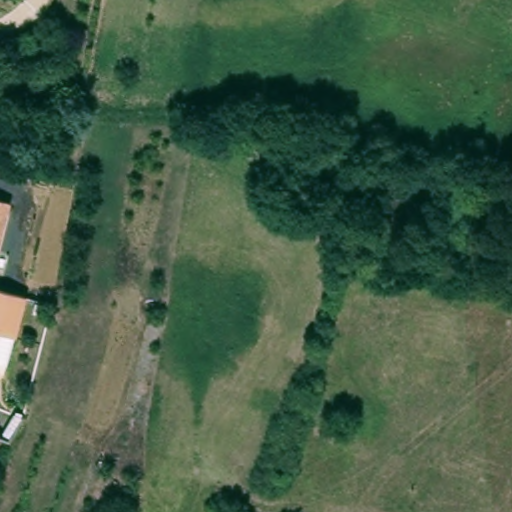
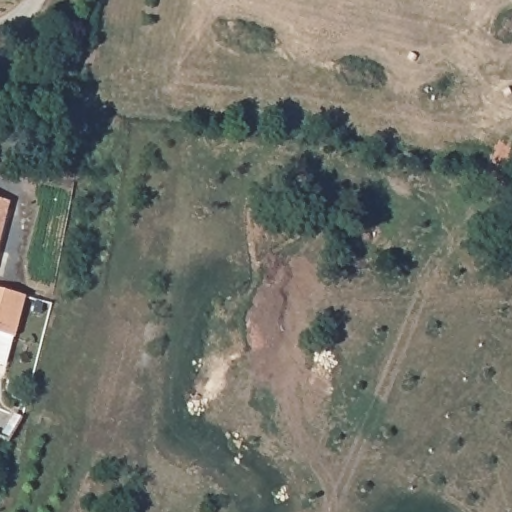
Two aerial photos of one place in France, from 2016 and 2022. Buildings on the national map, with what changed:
unchanged [(6,200),(0,226),(0,198),(6,200)]
unchanged [(0,334),(0,291),(20,297),(9,337),(0,334)]

